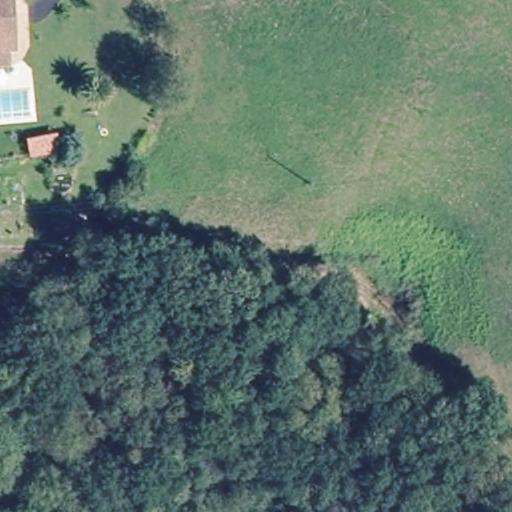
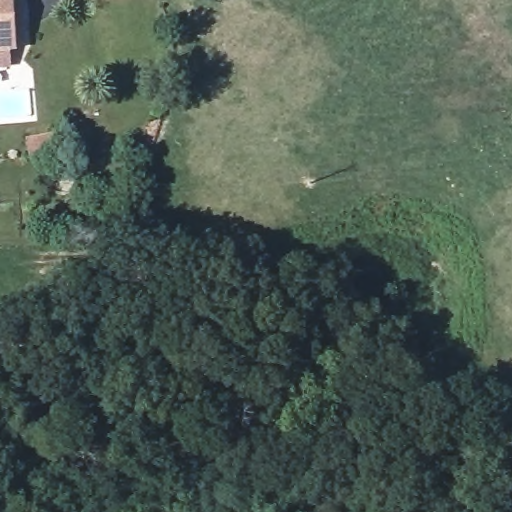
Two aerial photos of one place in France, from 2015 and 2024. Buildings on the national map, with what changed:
unchanged [(9,50),(0,51),(0,0),(6,0),(9,50)]

